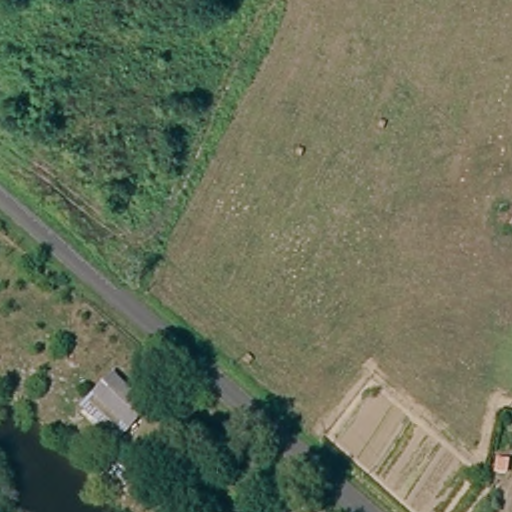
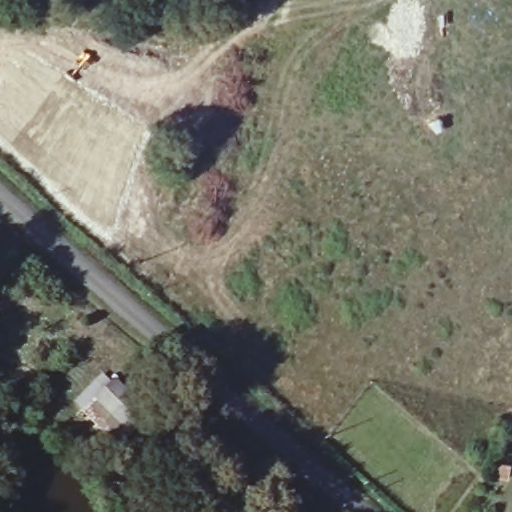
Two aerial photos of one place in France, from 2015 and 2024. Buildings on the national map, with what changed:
unchanged [(82,410),(95,399),(116,379),(153,413),(134,432),(121,446),(82,410)]

